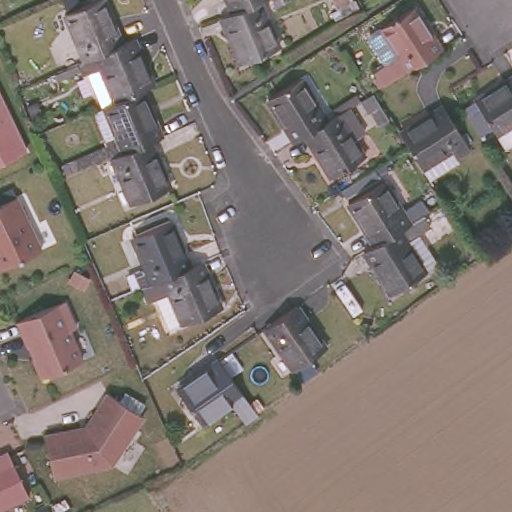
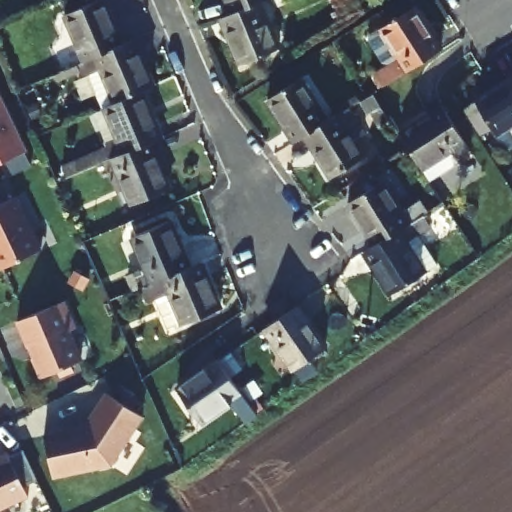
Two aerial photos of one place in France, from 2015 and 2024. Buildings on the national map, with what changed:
unchanged [(75,6),(89,0),(117,0),(132,36),(94,52),(75,6)]
unchanged [(225,0),(266,0),(260,3),(232,15),(225,0)]
unchanged [(260,3),(279,49),(240,66),(220,20),(232,15),(260,3)]
unchanged [(440,51),(407,71),(380,29),(413,9),(440,51)]
unchanged [(163,76),(152,81),(113,97),(110,99),(95,66),(94,66),(80,72),(75,60),(88,55),(94,52),(132,36),(144,31),(163,76)]
unchanged [(402,75),(383,87),(382,87),(375,76),(395,64),(402,75)]
unchanged [(492,137),(470,100),(512,75),(512,76),(512,125),(492,137)]
unchanged [(293,142),(267,101),(302,78),(328,120),(303,136),(293,142)]
unchanged [(113,97),(152,81),(172,127),(160,132),(133,144),(113,97)]
unchanged [(379,108),(368,114),(360,101),(365,97),(370,94),(379,108)]
unchanged [(0,162),(0,98),(25,150),(0,162)]
unchanged [(437,104),(465,147),(450,155),(452,159),(432,172),(424,177),(403,142),(395,130),(403,124),(437,104)]
unchanged [(339,114),(365,156),(330,179),(303,136),(328,120),(339,114)]
unchanged [(142,195),(122,149),(133,144),(160,132),(180,179),(142,195)]
unchanged [(101,145),(117,138),(122,149),(105,156),(101,145)]
unchanged [(368,242),(342,200),(378,177),(404,220),(368,242)]
unchanged [(0,268),(0,203),(15,196),(39,249),(0,268)]
unchanged [(404,220),(418,211),(425,222),(401,237),(420,268),(385,291),(358,248),(368,242),(404,220)]
unchanged [(140,288),(135,273),(145,268),(132,238),(170,222),(190,267),(140,288)]
unchanged [(202,262),(221,310),(168,332),(155,302),(147,305),(140,288),(190,267),(202,262)]
unchanged [(72,326),(67,328),(80,358),(40,376),(32,356),(35,355),(30,343),(27,345),(15,320),(60,298),(72,326)]
unchanged [(324,348),(292,370),(264,330),(295,307),(324,348)]
unchanged [(247,404),(235,412),(222,393),(192,414),(167,380),(208,352),(247,404)]
unchanged [(142,416),(108,465),(51,478),(42,437),(77,428),(78,432),(86,430),(85,425),(105,392),(142,416)]
unchanged [(0,510),(0,453),(6,450),(28,497),(0,510)]

